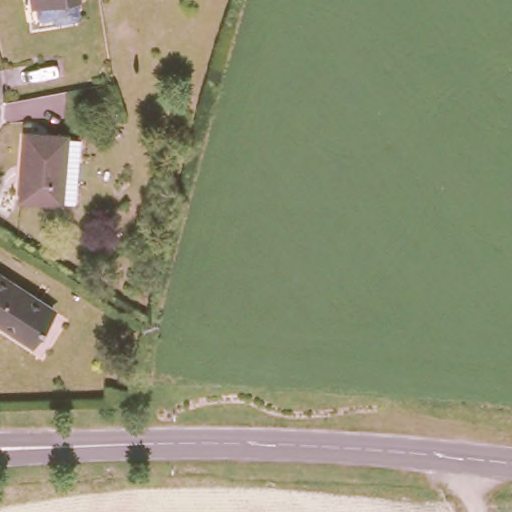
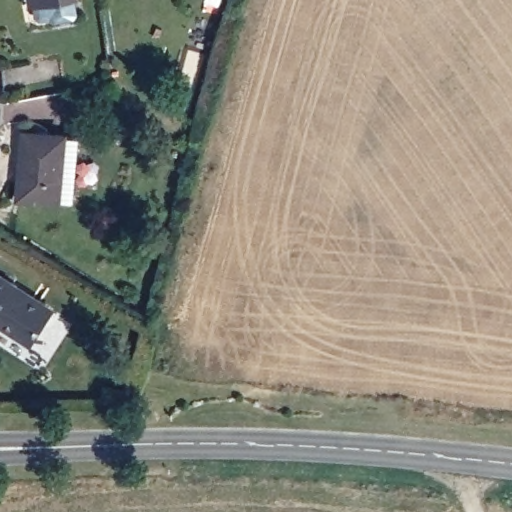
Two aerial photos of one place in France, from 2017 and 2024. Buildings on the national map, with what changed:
unchanged [(64,37),(20,45),(12,1),(20,0),(57,0),(64,37)]
unchanged [(59,204),(4,199),(10,133),(51,136),(51,139),(65,140),(59,204)]
unchanged [(27,344),(0,327),(0,281),(47,311),(27,344)]

